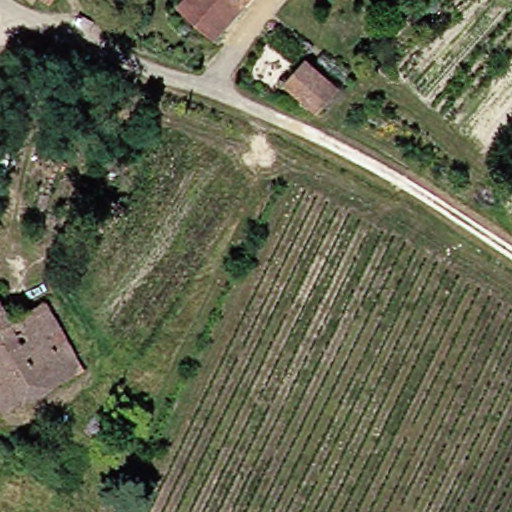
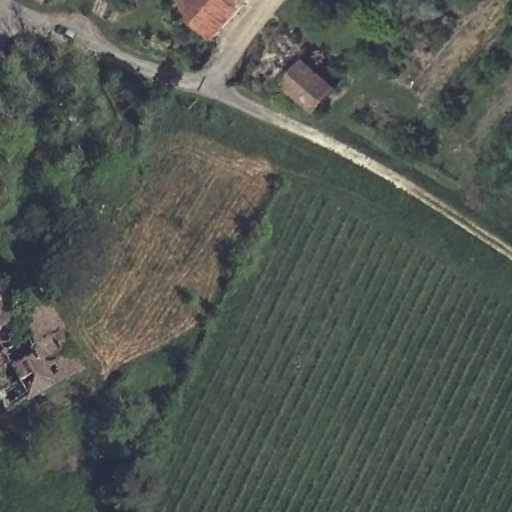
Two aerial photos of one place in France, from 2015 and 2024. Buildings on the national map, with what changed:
unchanged [(182,5),(187,0),(246,0),(217,33),(182,5)]
unchanged [(322,109),(290,80),(308,60),(341,88),(322,109)]
unchanged [(16,406),(0,381),(0,294),(5,291),(21,317),(54,296),(92,357),(79,365),(34,394),(16,406)]

